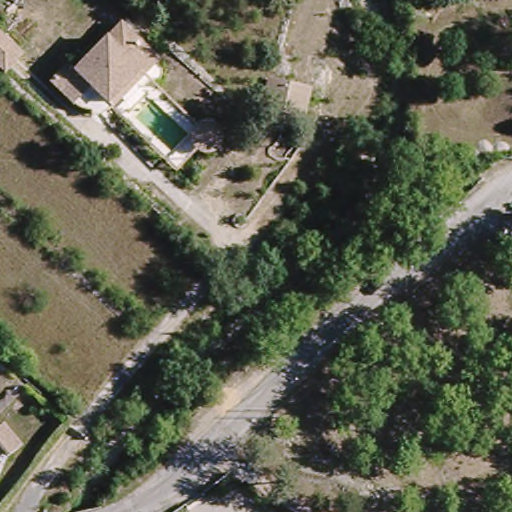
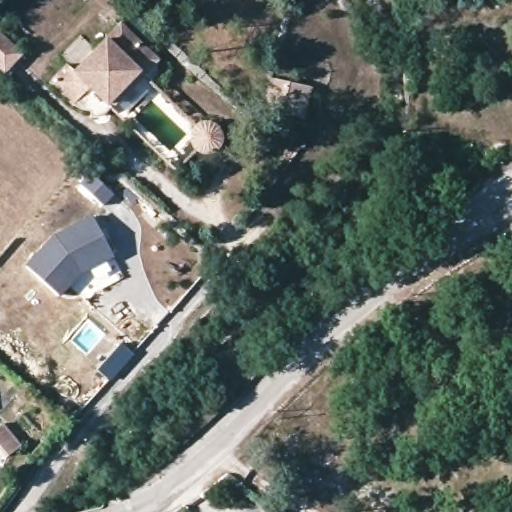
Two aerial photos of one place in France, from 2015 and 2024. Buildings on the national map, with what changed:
unchanged [(156,62),(108,110),(85,92),(70,109),(45,83),(65,61),(71,67),(116,22),(156,62)]
unchanged [(0,77),(0,36),(20,56),(0,77)]
unchanged [(314,86),(304,125),(257,116),(266,75),(314,86)]
new [(90,172),(113,194),(101,205),(78,184),(90,172)]
new [(51,234),(90,214),(113,258),(89,271),(78,277),(59,297),(23,264),(51,234)]
new [(120,342),(133,353),(108,380),(95,369),(120,342)]
unchanged [(3,462),(0,458),(0,424),(20,445),(3,462)]

